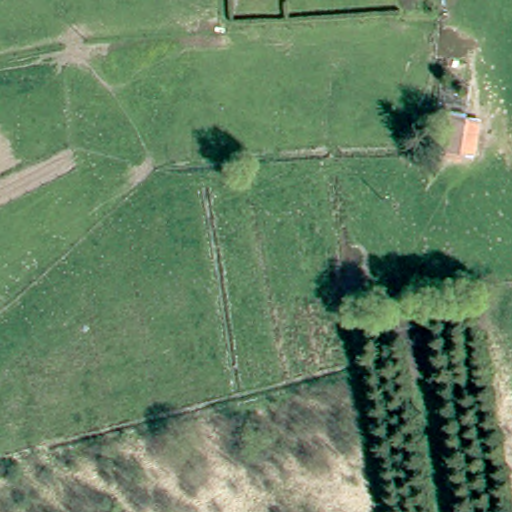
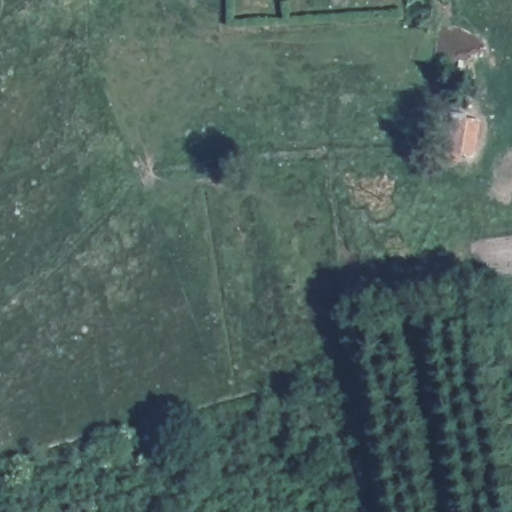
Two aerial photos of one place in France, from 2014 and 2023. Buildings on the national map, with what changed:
unchanged [(438,153),(445,119),(465,120),(461,156),(438,153)]

